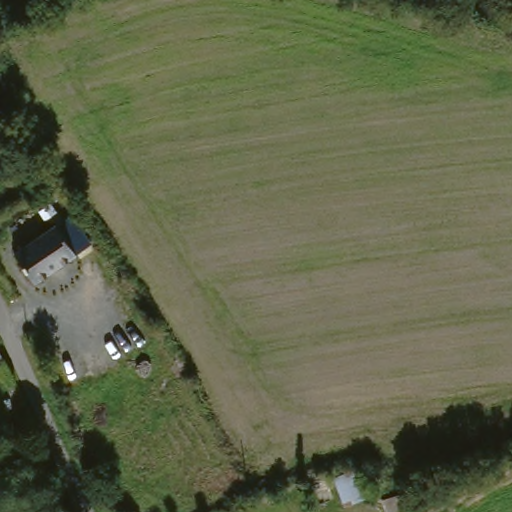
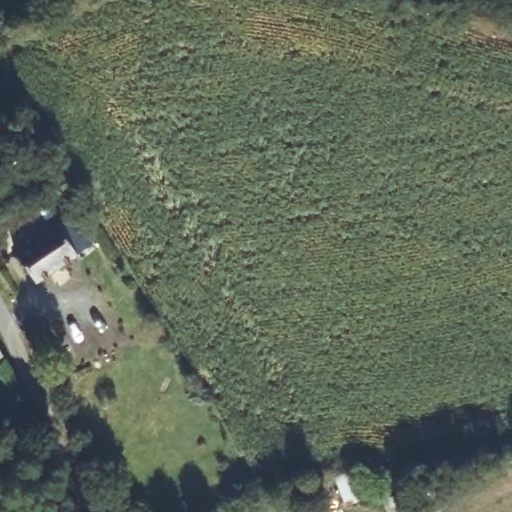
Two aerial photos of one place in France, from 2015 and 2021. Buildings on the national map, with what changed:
unchanged [(71,234),(86,223),(98,240),(41,277),(23,249),(63,222),(71,234)]
unchanged [(0,366),(0,345),(7,362),(0,366)]
unchanged [(370,501),(344,509),(335,480),(362,475),(370,501)]

